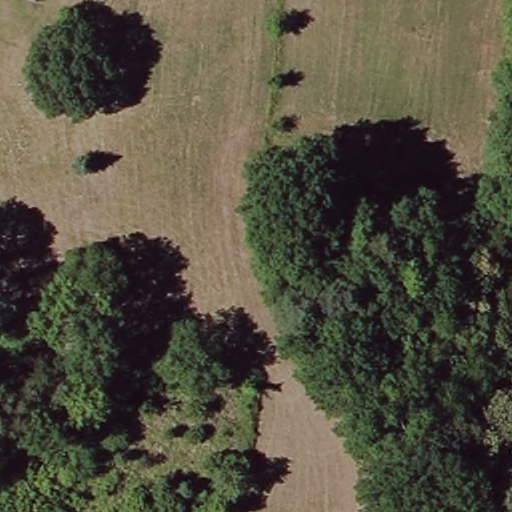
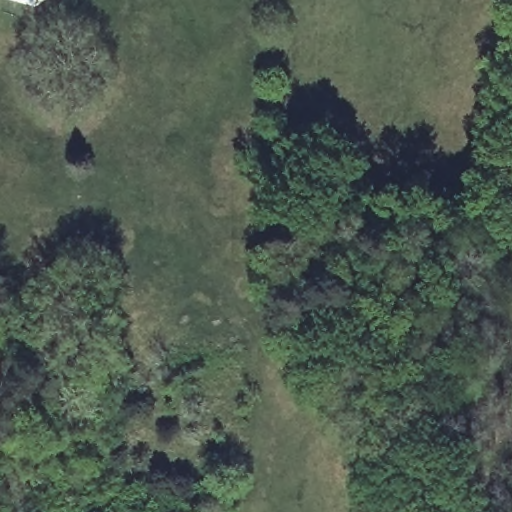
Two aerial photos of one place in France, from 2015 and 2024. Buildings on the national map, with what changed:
[]

